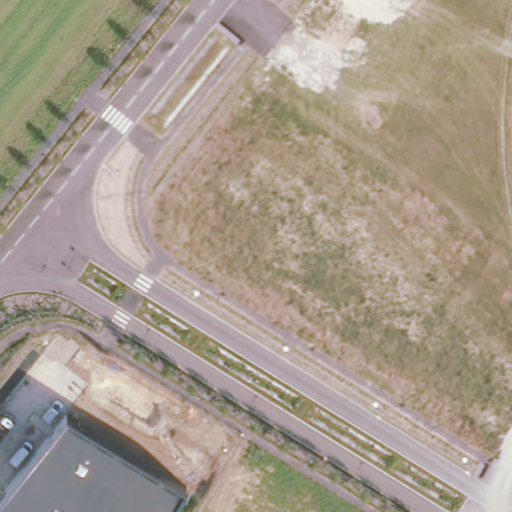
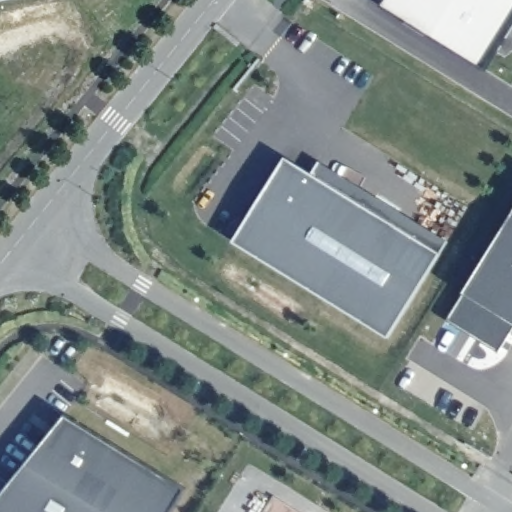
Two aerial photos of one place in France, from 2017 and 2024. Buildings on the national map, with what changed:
new [(512,0),(512,16),(482,65),(383,6),(387,0),(512,0)]
new [(440,255),(387,339),(232,242),(285,159),(440,255)]
new [(319,162),(447,243),(440,255),(311,175),(319,162)]
new [(497,354),(446,322),(512,215),(512,331),(497,354)]
unchanged [(186,489),(172,512),(0,512),(0,498),(67,416),(186,489)]

